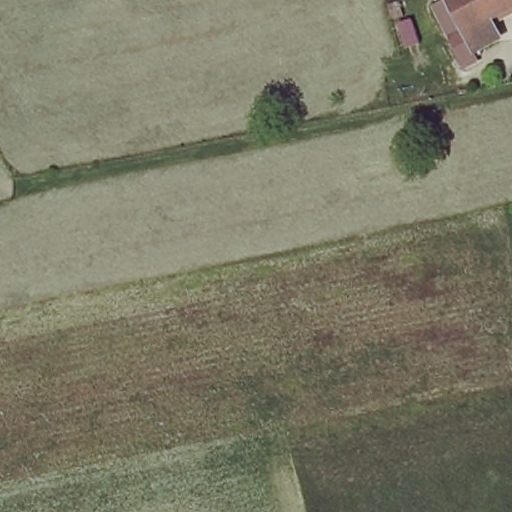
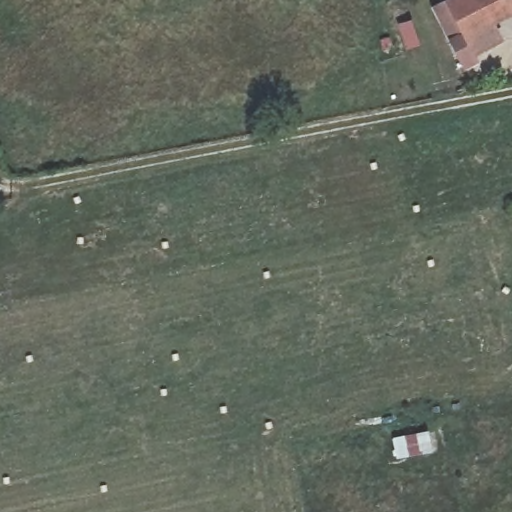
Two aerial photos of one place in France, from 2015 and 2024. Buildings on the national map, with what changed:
unchanged [(495,37),(454,57),(447,40),(457,35),(444,0),(512,0),(512,12),(489,22),(495,37)]

